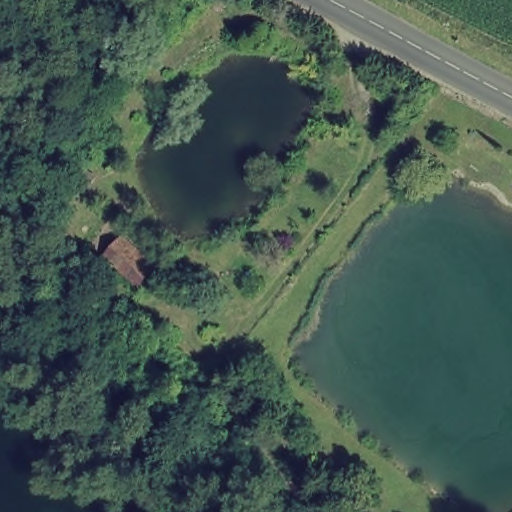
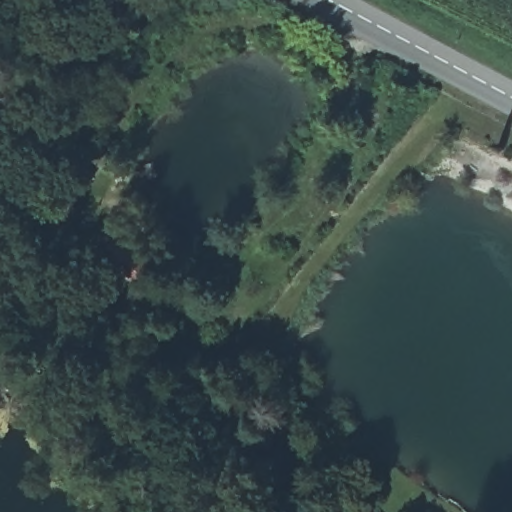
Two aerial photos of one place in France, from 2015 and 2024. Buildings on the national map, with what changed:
unchanged [(135,289),(98,253),(119,231),(156,264),(135,289)]
unchanged [(370,512),(365,512),(368,508),(370,512)]

